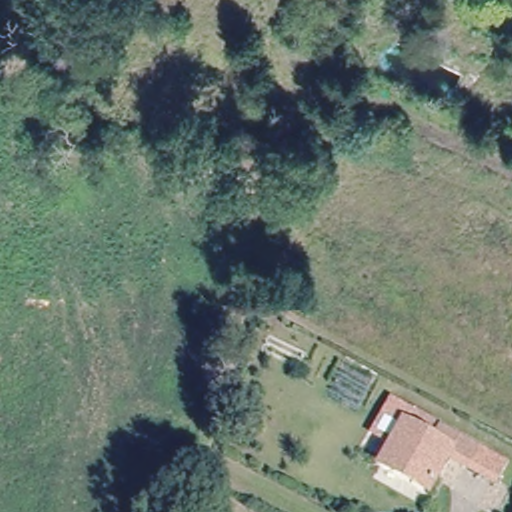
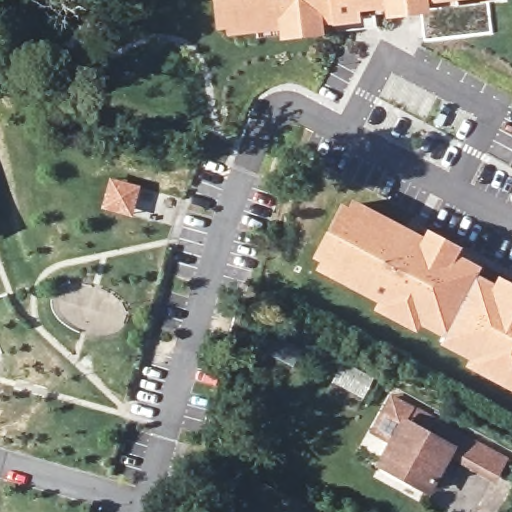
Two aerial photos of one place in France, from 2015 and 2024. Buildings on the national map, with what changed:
new [(427,12),(421,13),(361,20),(322,23),(323,32),(257,37),(257,32),(228,35),(227,29),(216,30),(212,0),(457,0),(457,8),(427,12)]
new [(427,12),(457,8),(457,0),(505,0),(506,0),(488,3),(491,32),(425,39),(421,13),(427,12)]
new [(111,180),(139,189),(131,217),(102,208),(111,180)]
new [(469,359),(439,345),(444,336),(421,324),(416,333),(373,310),(377,303),(316,270),(321,260),(312,257),(340,202),(348,205),(352,198),(422,237),(427,228),(461,247),(457,254),(480,267),(476,275),(494,284),(498,274),(512,282),(512,390),(466,367),(469,359)]
new [(7,295),(0,297),(0,277),(7,295)]
unchanged [(423,494),(376,467),(387,447),(368,436),(387,404),(427,427),(420,440),(428,445),(446,455),(445,457),(423,494)]
unchanged [(446,455),(428,445),(436,432),(497,467),(488,482),(445,457),(446,455)]

